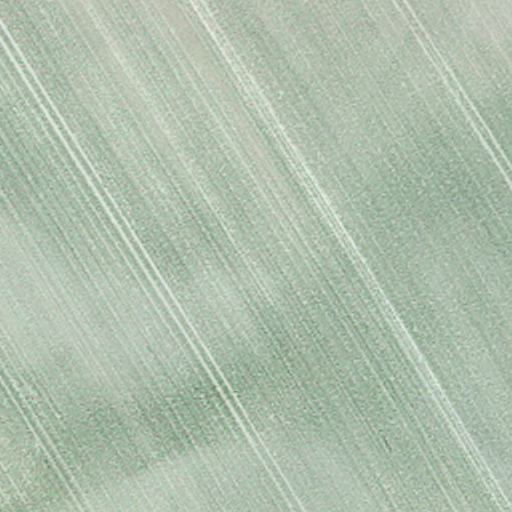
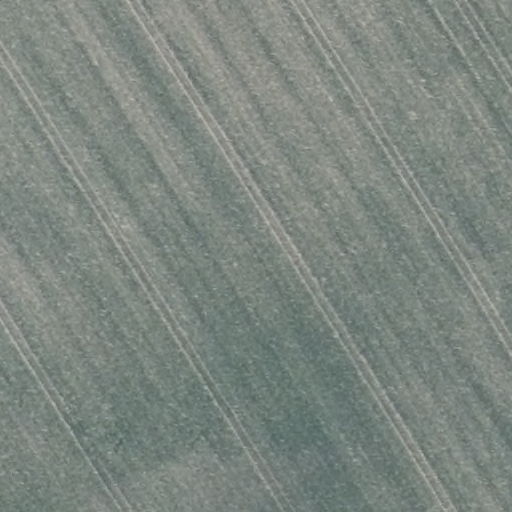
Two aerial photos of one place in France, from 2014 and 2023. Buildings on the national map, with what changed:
[]

